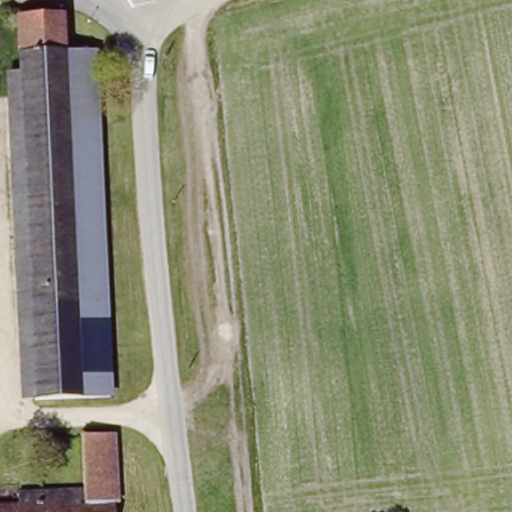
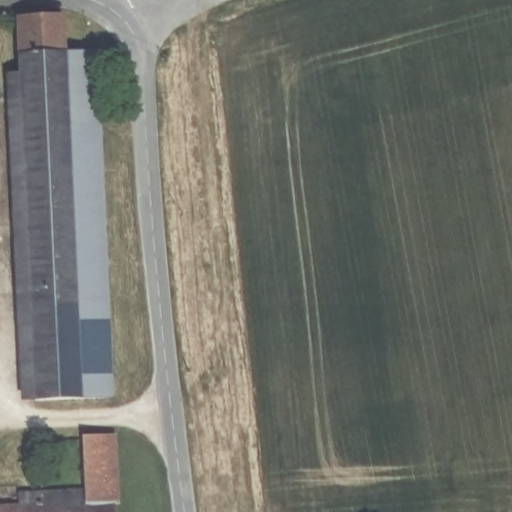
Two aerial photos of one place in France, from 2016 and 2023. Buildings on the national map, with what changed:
unchanged [(65,14),(70,66),(89,397),(37,396),(10,15),(65,14)]
unchanged [(111,396),(89,397),(70,66),(97,63),(111,396)]
unchanged [(124,438),(127,505),(116,505),(33,505),(32,491),(80,490),(77,438),(124,438)]
unchanged [(116,505),(116,512),(7,512),(7,505),(33,505),(116,505)]

